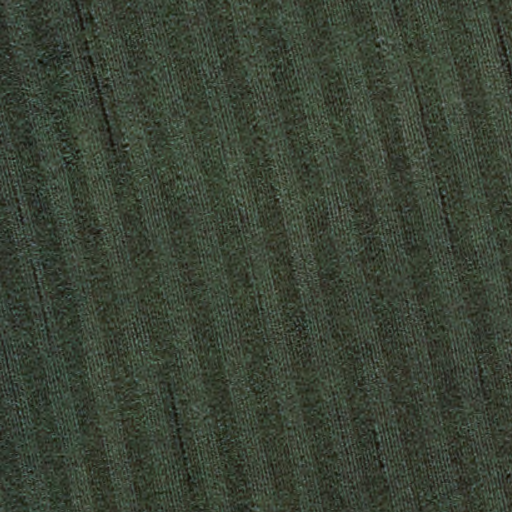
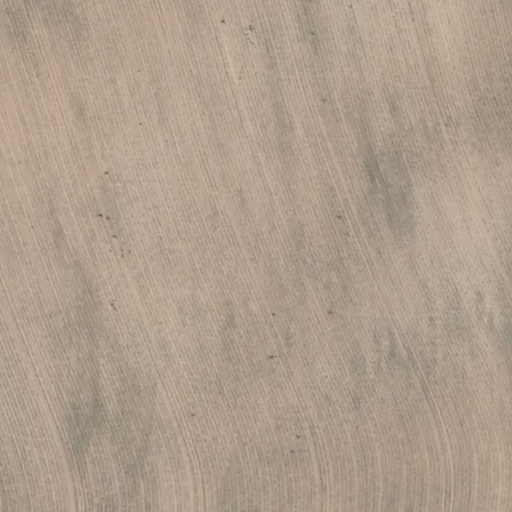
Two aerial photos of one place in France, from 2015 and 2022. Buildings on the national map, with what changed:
[]

